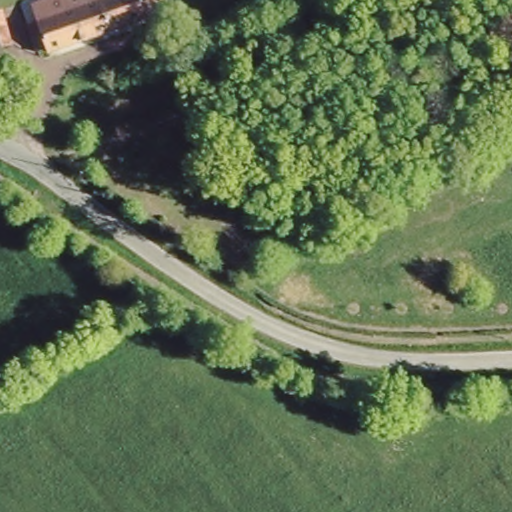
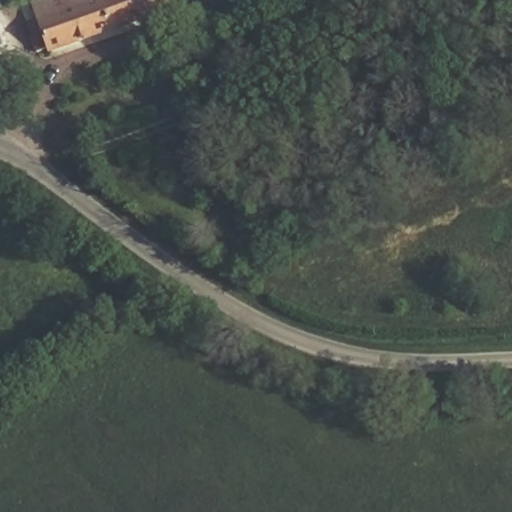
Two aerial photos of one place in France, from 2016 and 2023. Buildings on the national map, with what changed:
unchanged [(45,46),(37,50),(27,24),(37,21),(32,4),(43,0),(160,0),(164,11),(47,51),(45,46)]
unchanged [(12,43),(0,46),(0,10),(2,9),(12,43)]

